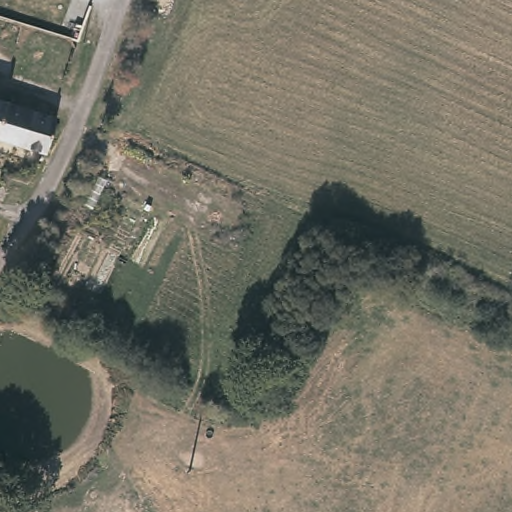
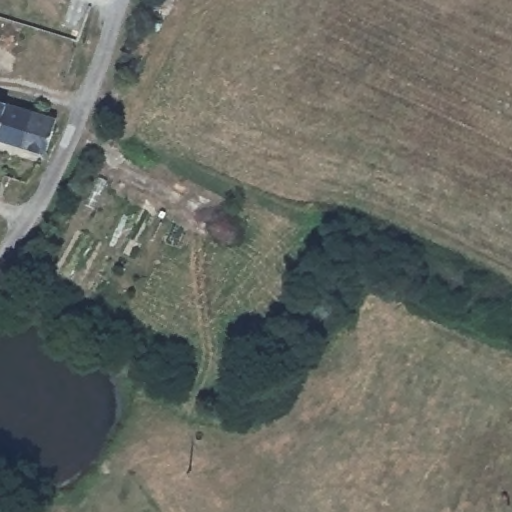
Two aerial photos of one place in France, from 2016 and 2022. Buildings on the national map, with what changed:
unchanged [(50,149),(0,134),(0,95),(61,112),(50,149)]

